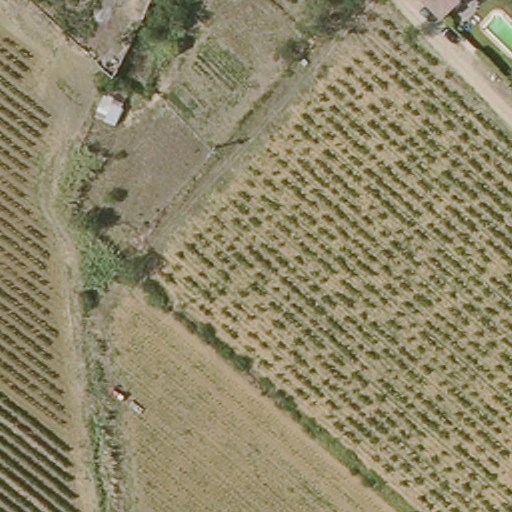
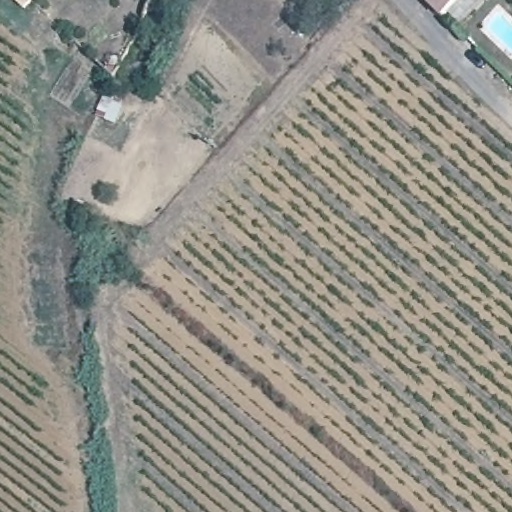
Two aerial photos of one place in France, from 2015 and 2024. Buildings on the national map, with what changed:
unchanged [(133,9),(134,0),(158,0),(149,16),(133,9)]
unchanged [(433,0),(459,0),(447,13),(433,0)]

